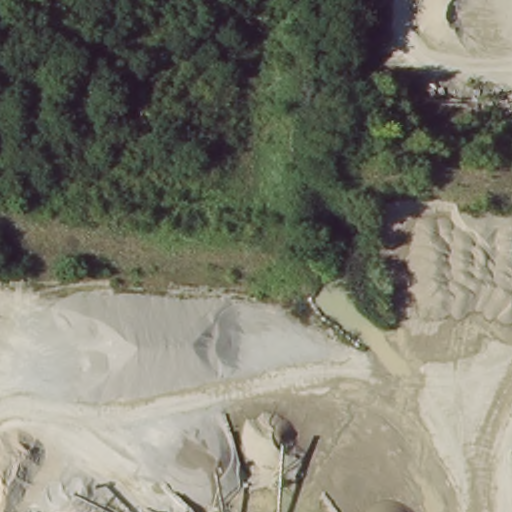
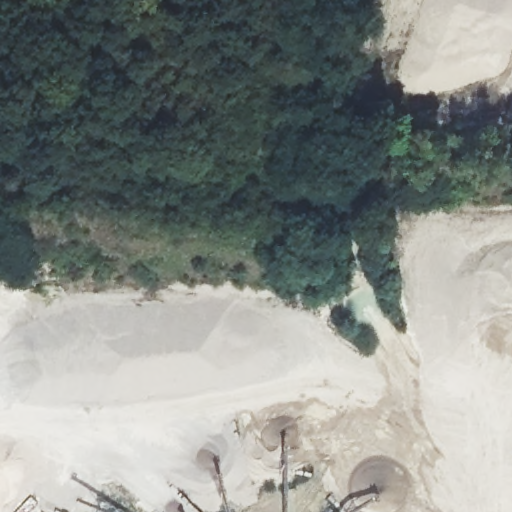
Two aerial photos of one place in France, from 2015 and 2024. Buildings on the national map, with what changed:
[]

